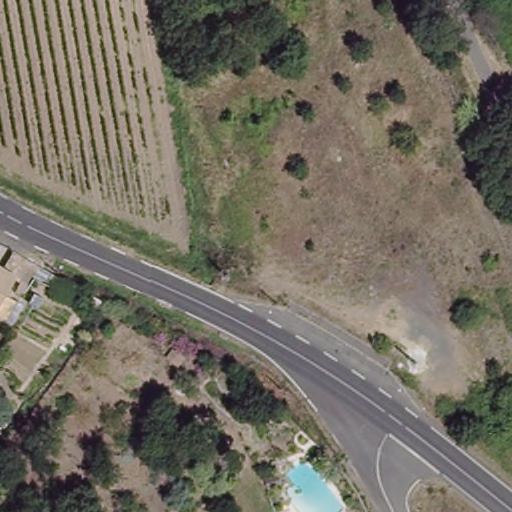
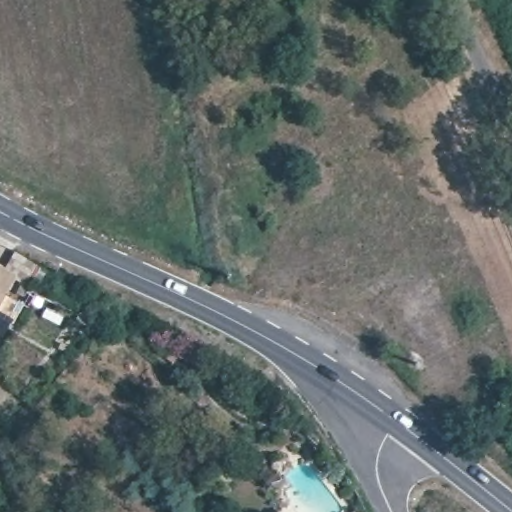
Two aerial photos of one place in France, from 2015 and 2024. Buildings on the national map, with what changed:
unchanged [(15,272),(0,301),(0,264),(15,272)]

